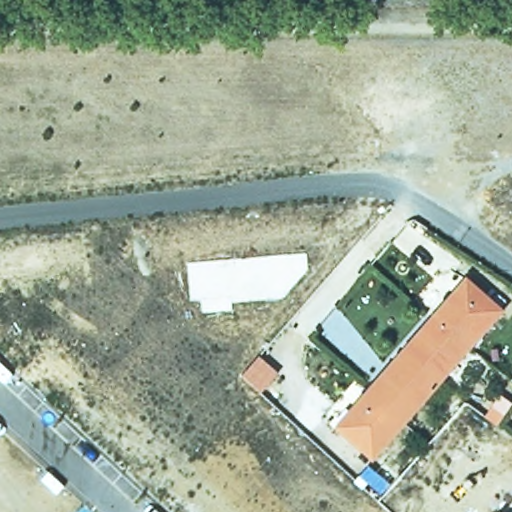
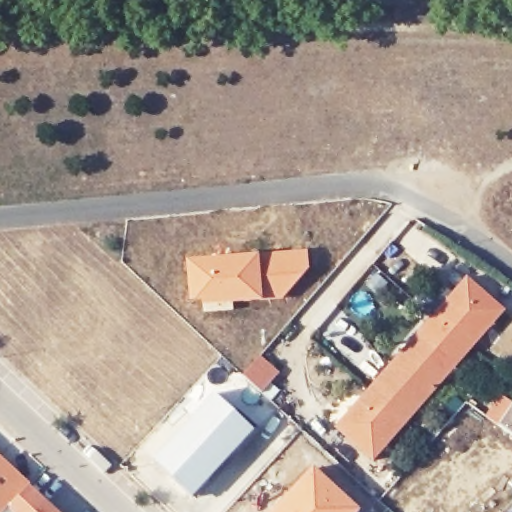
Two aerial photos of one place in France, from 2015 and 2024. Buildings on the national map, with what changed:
new [(231,310),(202,312),(200,300),(190,300),(185,262),(306,252),(307,270),(280,298),(230,301),(231,310)]
unchanged [(465,277),(503,311),(372,461),(334,427),(465,277)]
new [(257,356),(280,375),(270,386),(278,392),(269,403),(239,380),(257,356)]
new [(189,498),(150,460),(212,393),(252,431),(189,498)]
new [(29,485),(59,512),(0,512),(0,457),(29,485)]
new [(362,510),(361,512),(270,512),(314,465),(362,510)]

